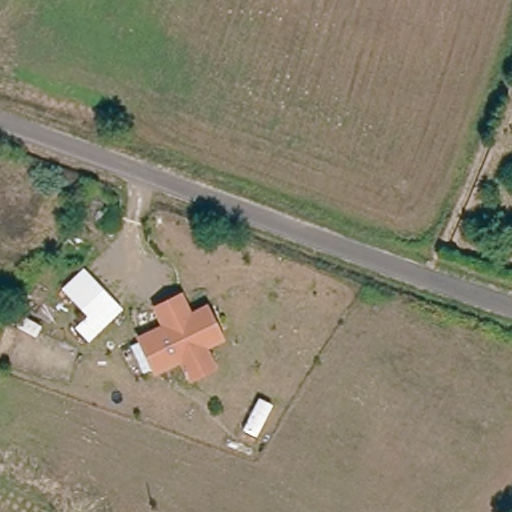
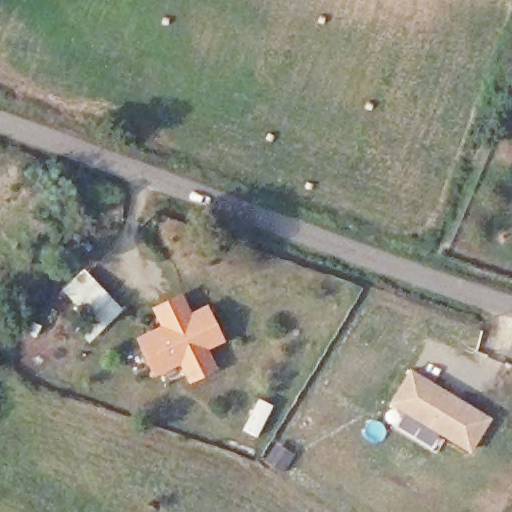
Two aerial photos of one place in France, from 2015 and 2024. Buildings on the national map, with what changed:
unchanged [(92,275),(102,288),(85,304),(74,292),(92,275)]
unchanged [(195,305),(202,323),(216,316),(231,346),(217,354),(225,371),(204,381),(195,364),(179,371),(166,342),(180,334),(172,316),(195,305)]
new [(492,418),(470,453),(387,404),(410,369),(492,418)]

